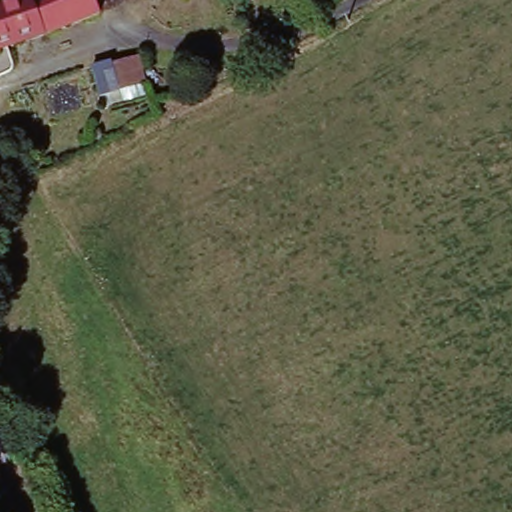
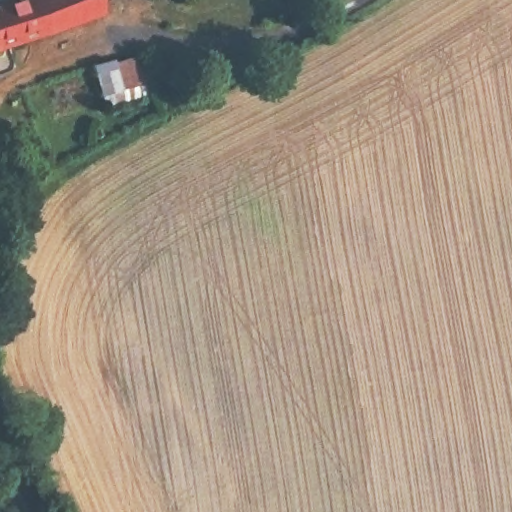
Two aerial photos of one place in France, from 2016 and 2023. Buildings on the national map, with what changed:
unchanged [(0,47),(0,0),(99,0),(103,12),(0,47)]
unchanged [(104,102),(96,66),(146,55),(154,89),(104,102)]

